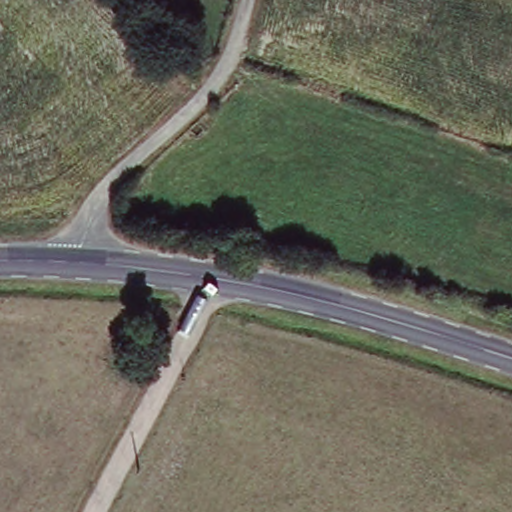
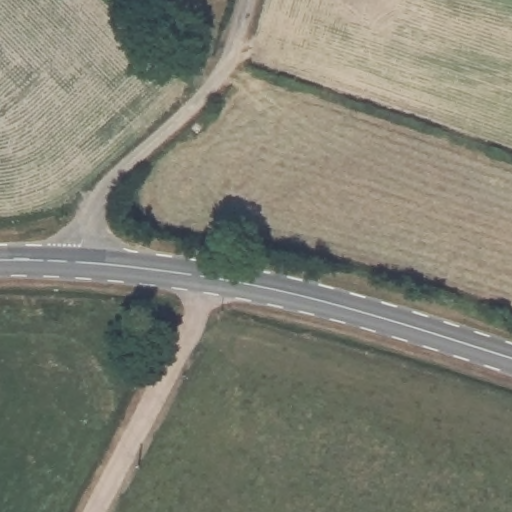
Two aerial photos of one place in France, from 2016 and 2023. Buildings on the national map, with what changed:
[]

